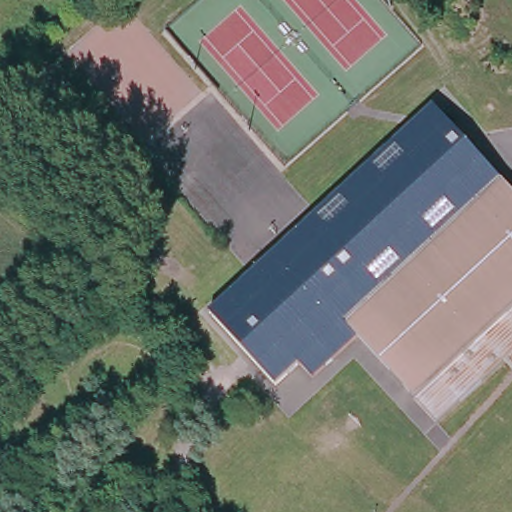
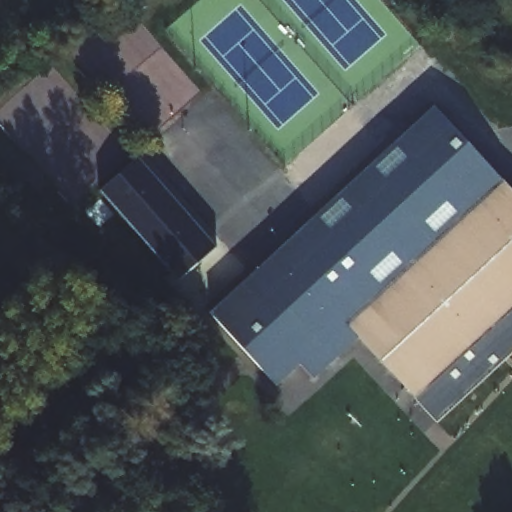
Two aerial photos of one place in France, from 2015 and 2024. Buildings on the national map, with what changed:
unchanged [(313,377),(300,363),(277,385),(210,311),(434,105),(503,179),(346,323),(358,336),(313,377)]
new [(99,189),(137,156),(216,246),(178,280),(99,189)]
unchanged [(503,179),(512,189),(512,352),(436,421),(346,323),(503,179)]

